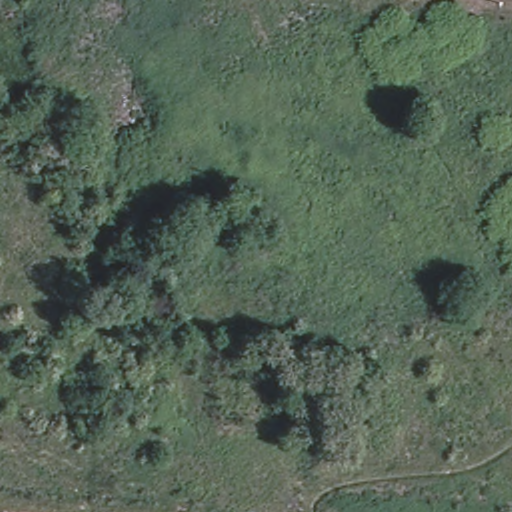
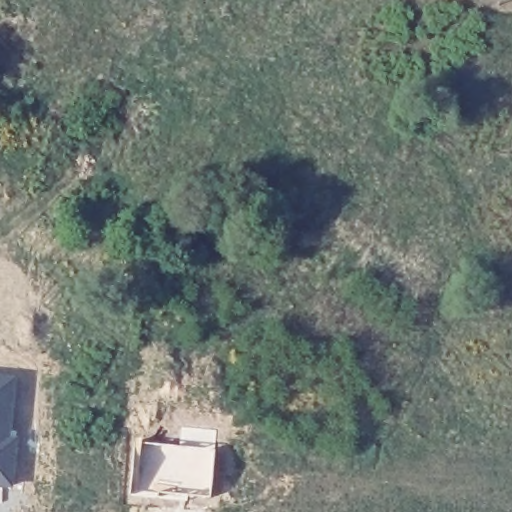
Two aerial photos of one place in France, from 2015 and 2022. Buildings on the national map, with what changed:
new [(13,440),(17,441),(13,488),(0,487),(0,376),(17,377),(13,440)]
new [(213,448),(211,497),(158,495),(158,499),(130,496),(134,442),(213,448)]

